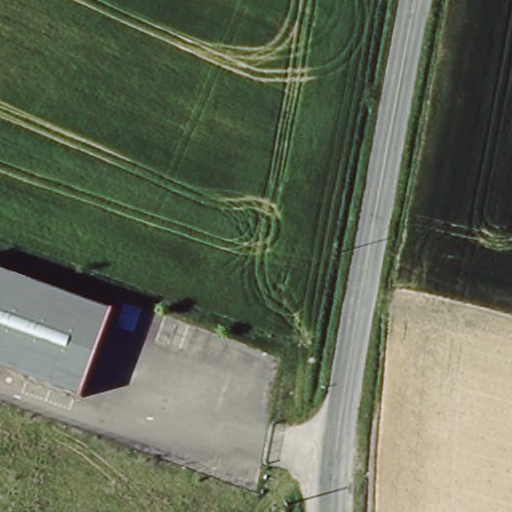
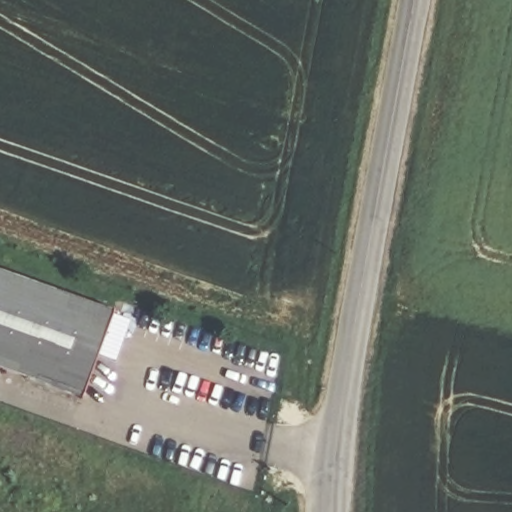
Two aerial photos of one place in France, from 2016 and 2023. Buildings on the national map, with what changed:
unchanged [(81,398),(0,368),(0,270),(114,310),(81,398)]

